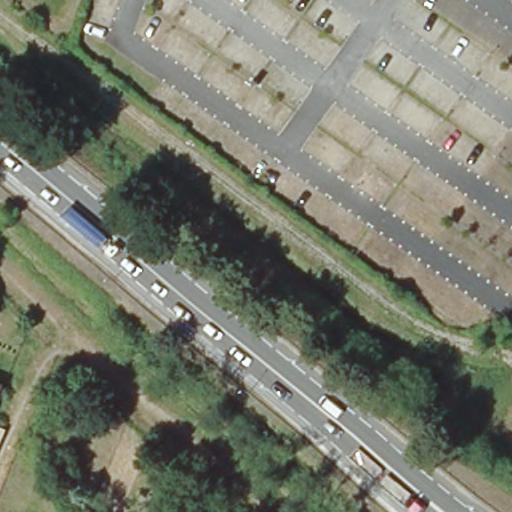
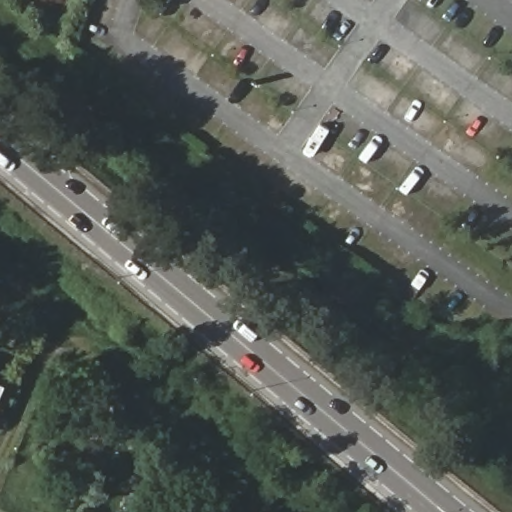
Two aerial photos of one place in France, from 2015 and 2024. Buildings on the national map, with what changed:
[]

